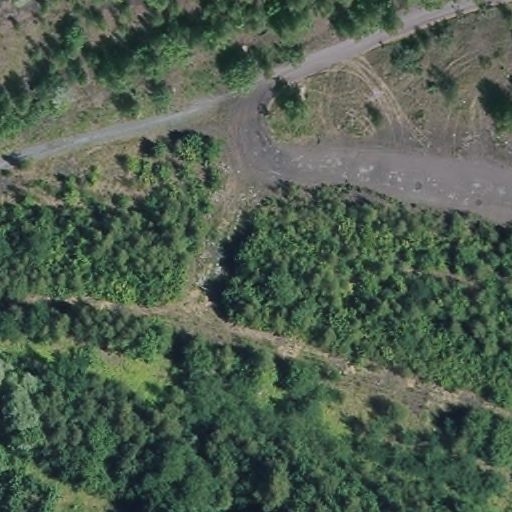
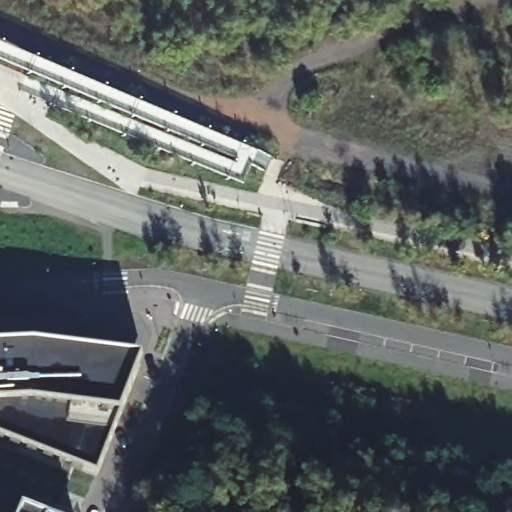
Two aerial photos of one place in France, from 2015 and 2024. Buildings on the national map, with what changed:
new [(118,415),(96,472),(0,436),(0,346),(34,345),(141,358),(118,415)]
new [(64,512),(21,512),(23,505),(29,499),(64,512)]

